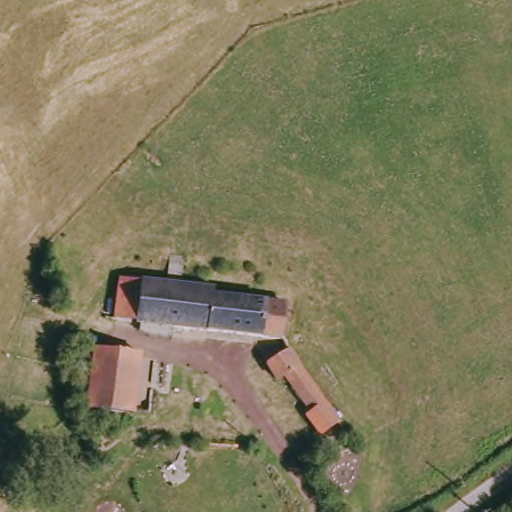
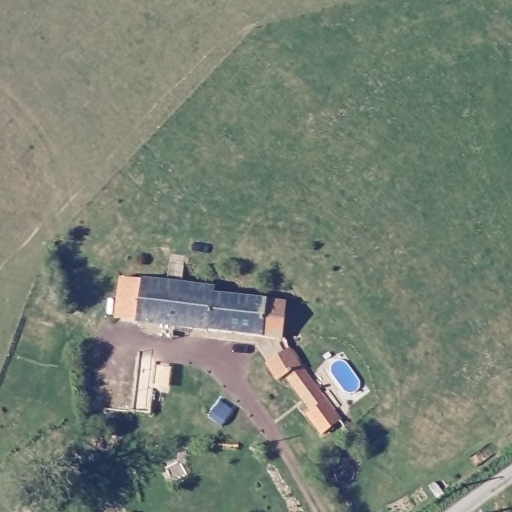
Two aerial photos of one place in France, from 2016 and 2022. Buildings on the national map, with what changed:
unchanged [(223,290),(222,299),(293,307),(290,338),(122,317),(127,278),(223,290)]
unchanged [(141,353),(140,360),(159,360),(155,415),(92,410),(100,350),(141,353)]
unchanged [(340,420),(319,435),(307,416),(312,412),(295,388),(289,392),(280,378),(277,380),(267,363),(290,350),(340,420)]

